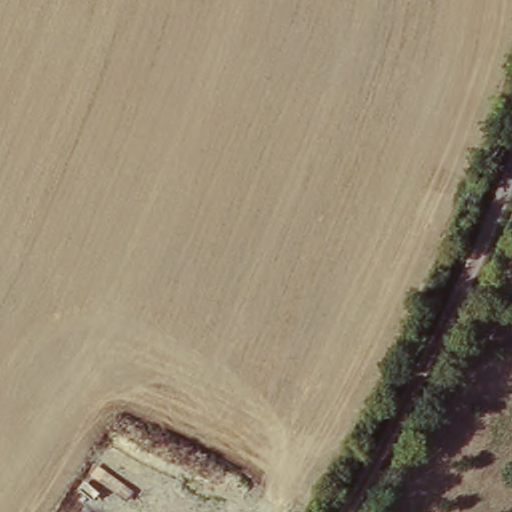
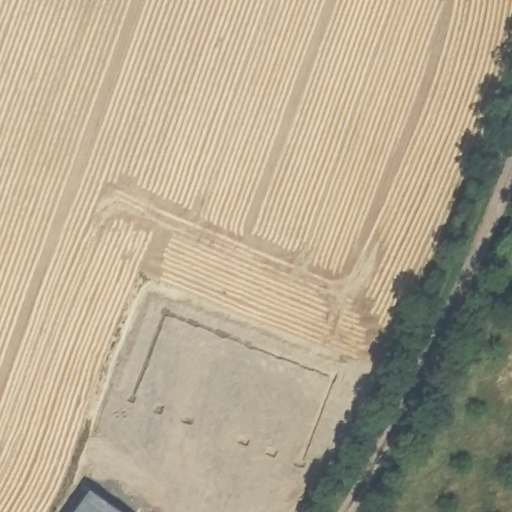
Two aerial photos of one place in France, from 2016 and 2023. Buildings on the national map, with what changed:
new [(117,512),(72,512),(87,491),(117,512)]

